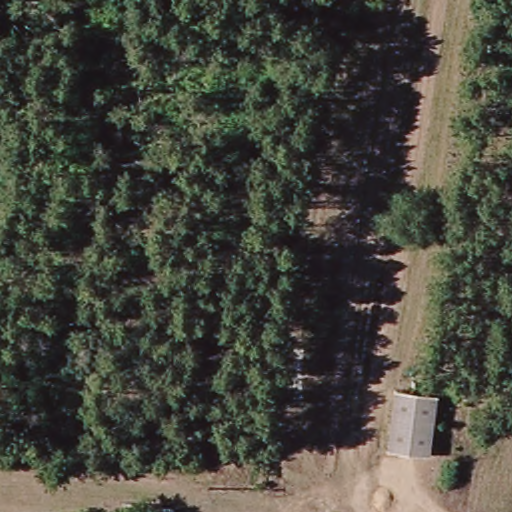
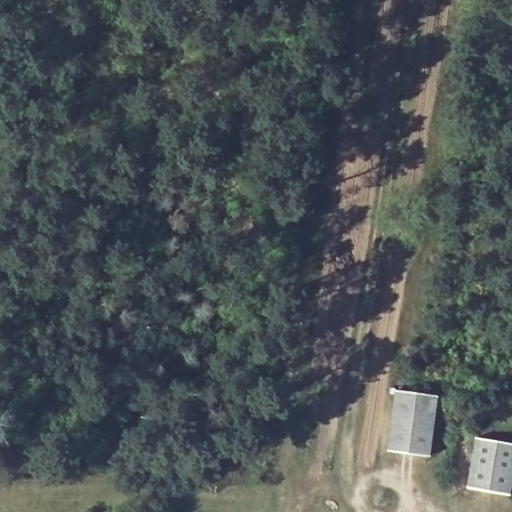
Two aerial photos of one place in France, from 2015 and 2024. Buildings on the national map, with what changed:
unchanged [(431,458),(390,452),(399,389),(440,395),(431,458)]
new [(512,443),(512,494),(472,489),(480,439),(512,443)]

